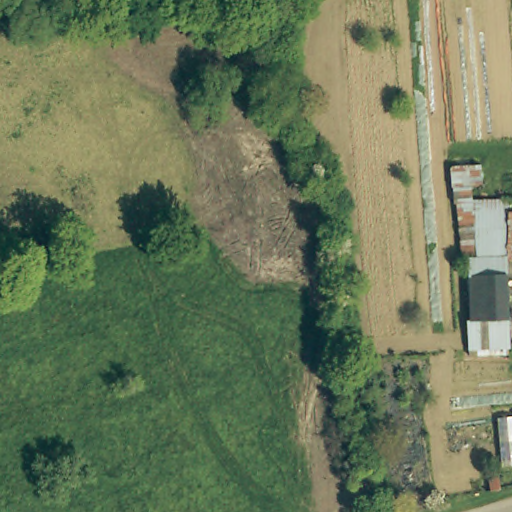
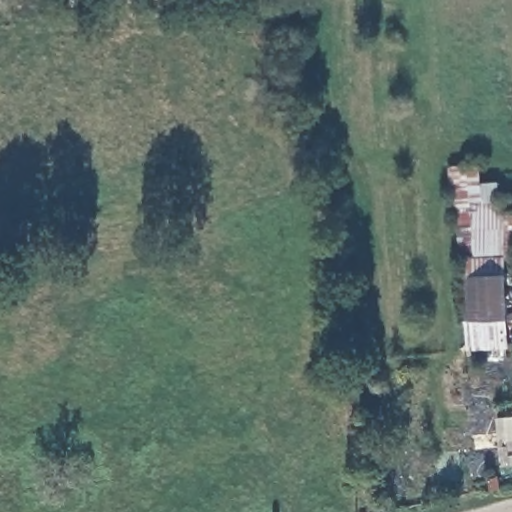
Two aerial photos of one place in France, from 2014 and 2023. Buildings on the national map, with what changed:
unchanged [(467,260),(453,165),(485,162),(486,182),(474,184),(476,197),(511,198),(512,206),(512,260),(512,355),(472,355),(473,260),(467,260)]

